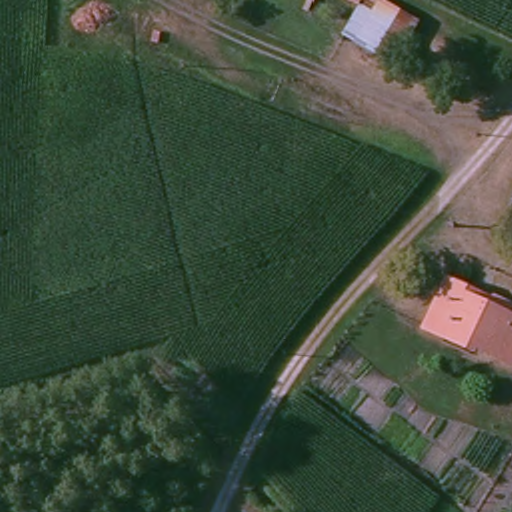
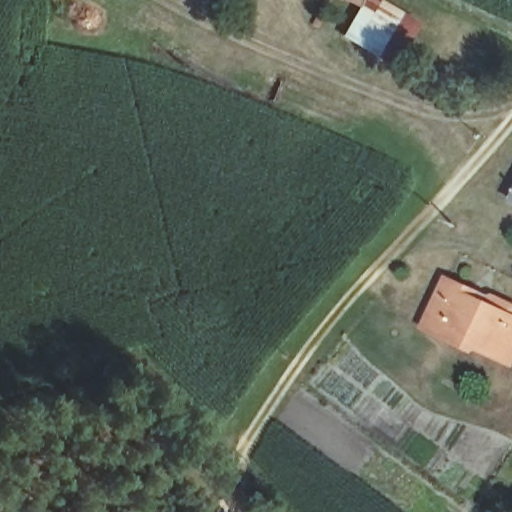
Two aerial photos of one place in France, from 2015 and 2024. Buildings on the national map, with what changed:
unchanged [(341,39),(358,10),(336,0),(377,0),(419,26),(393,67),(341,39)]
unchanged [(512,310),(512,362),(507,372),(427,331),(453,280),(512,310)]

